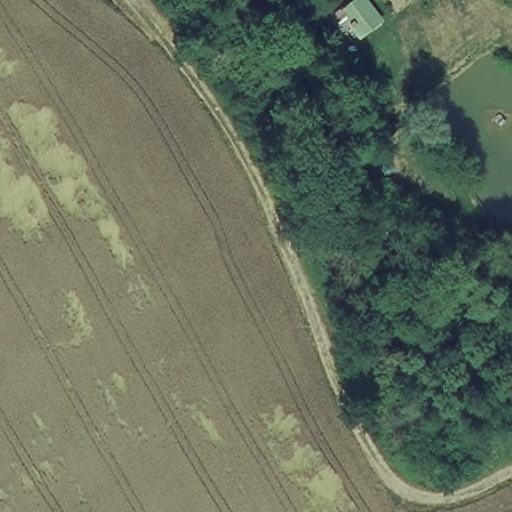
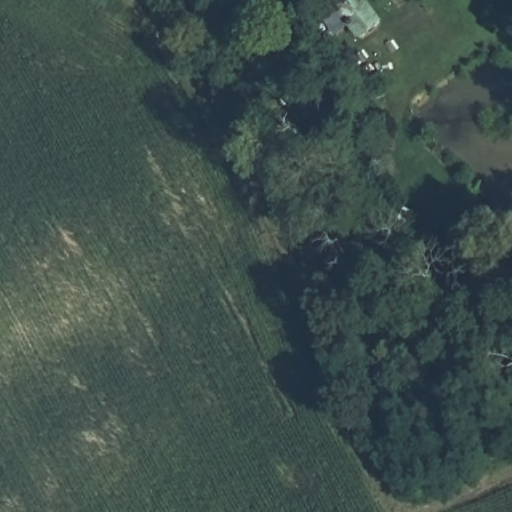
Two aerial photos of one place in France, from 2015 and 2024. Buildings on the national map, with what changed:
unchanged [(333,12),(352,0),(375,0),(392,27),(360,52),(333,12)]

